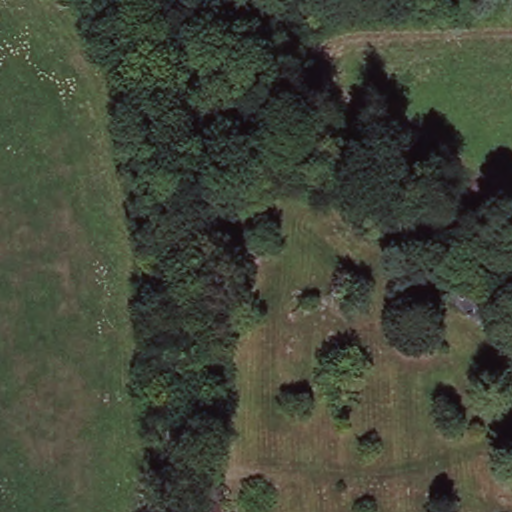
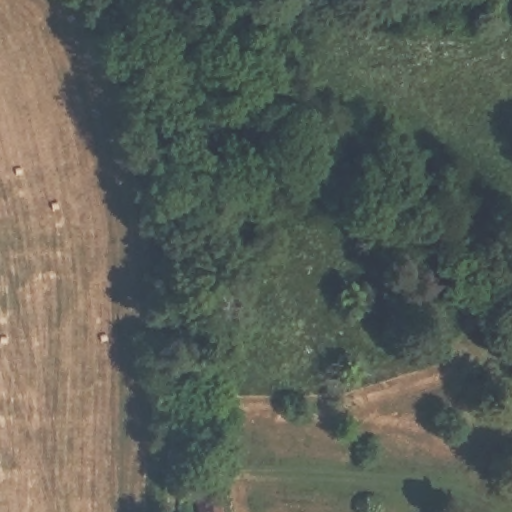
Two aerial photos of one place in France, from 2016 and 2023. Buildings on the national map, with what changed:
unchanged [(457,283),(493,312),(479,329),(443,297),(457,283)]
unchanged [(216,487),(218,512),(197,512),(196,487),(216,487)]

